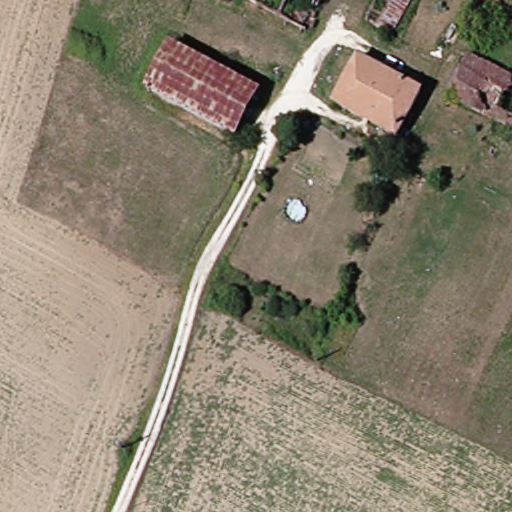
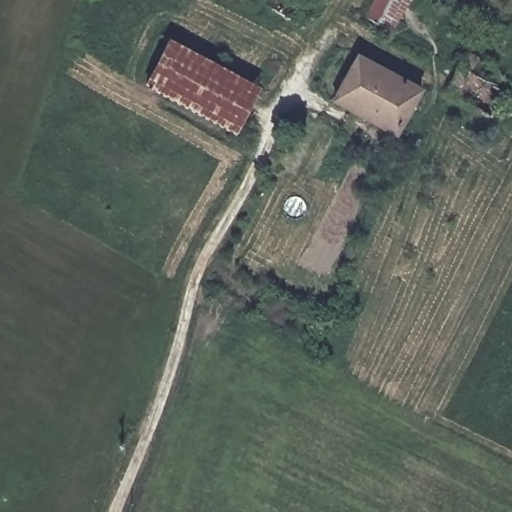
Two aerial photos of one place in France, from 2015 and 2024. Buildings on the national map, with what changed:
unchanged [(384,34),(359,20),(369,0),(399,0),(402,1),(384,34)]
unchanged [(183,52),(160,97),(156,95),(139,87),(161,41),(170,45),(183,52)]
unchanged [(252,87),(229,132),(160,97),(183,52),(252,87)]
unchanged [(391,135),(328,103),(352,58),(414,91),(391,135)]
unchanged [(436,99),(456,58),(467,63),(461,78),(492,94),(479,122),(436,99)]
unchanged [(461,78),(467,63),(512,86),(512,123),(506,136),(479,122),(492,94),(461,78)]

